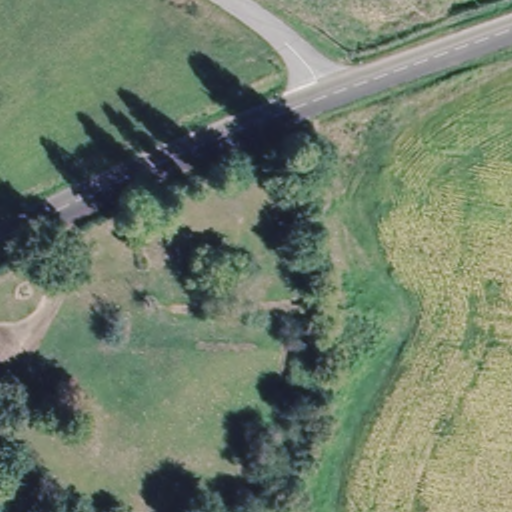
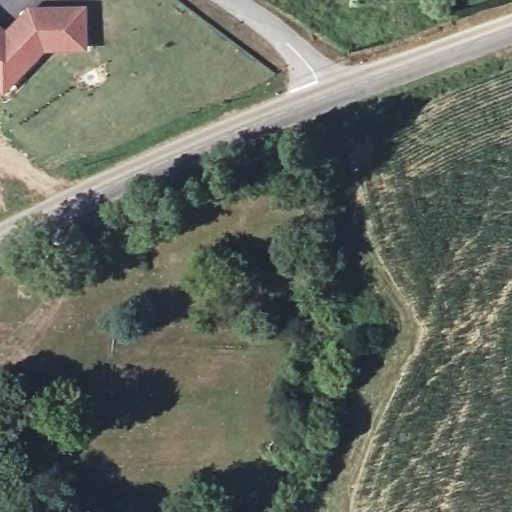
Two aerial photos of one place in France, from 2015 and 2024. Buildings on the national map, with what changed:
new [(0,84),(0,27),(7,34),(12,29),(18,29),(25,21),(22,18),(31,9),(86,7),(87,45),(85,46),(45,48),(16,79),(5,89),(0,84)]

